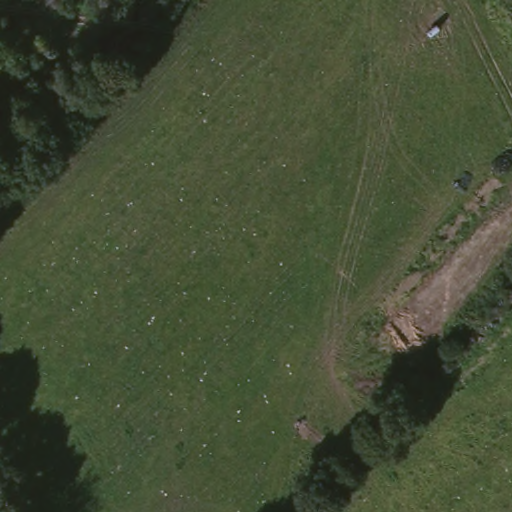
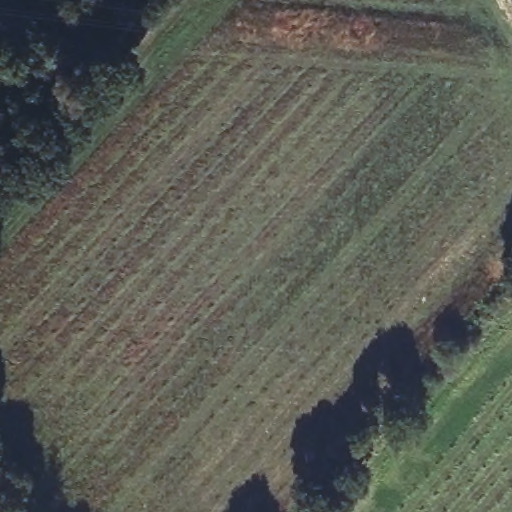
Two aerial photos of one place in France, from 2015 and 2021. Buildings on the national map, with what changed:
[]

